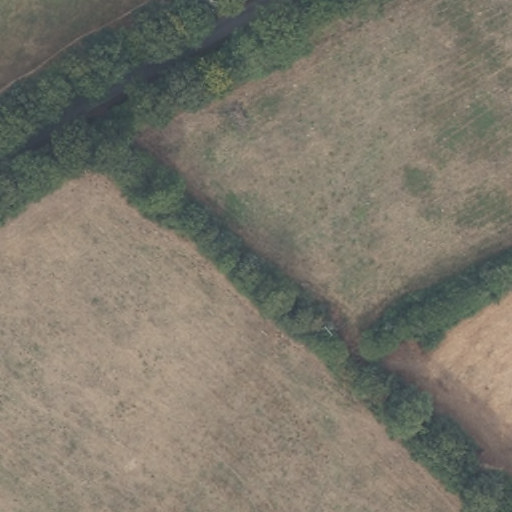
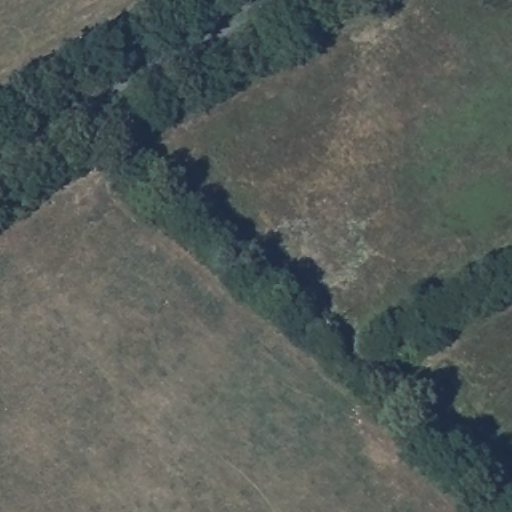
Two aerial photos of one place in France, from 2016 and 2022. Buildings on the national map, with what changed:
[]

